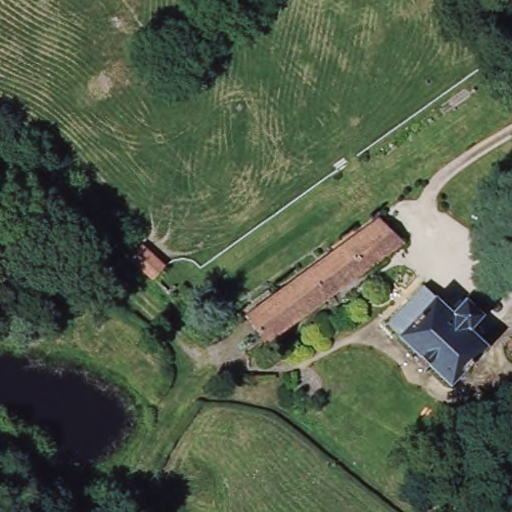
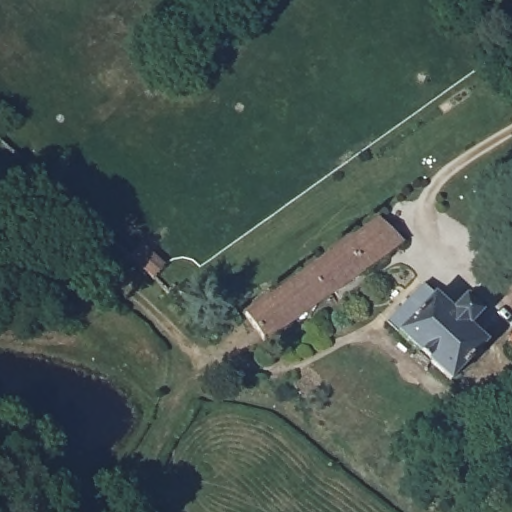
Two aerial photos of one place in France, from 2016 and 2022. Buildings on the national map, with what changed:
unchanged [(260,342),(240,314),(375,217),(400,241),(260,342)]
unchanged [(165,266),(154,279),(153,279),(129,258),(140,244),(165,266)]
unchanged [(482,343),(445,382),(394,333),(430,295),(447,311),(461,297),(478,313),(465,327),(482,343)]
unchanged [(502,342),(512,332),(512,351),(502,342)]

